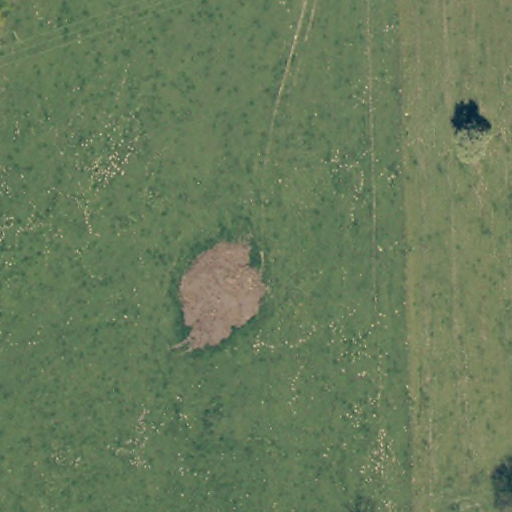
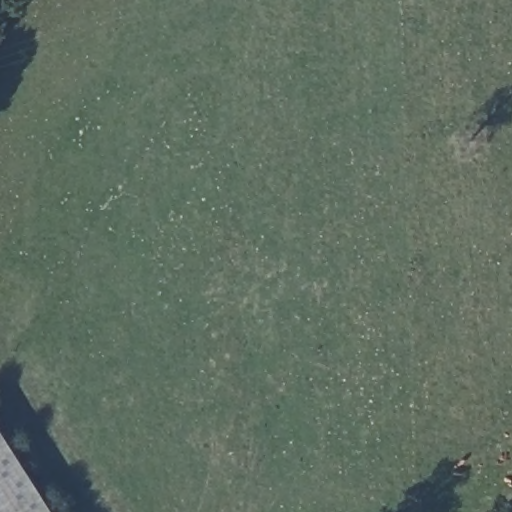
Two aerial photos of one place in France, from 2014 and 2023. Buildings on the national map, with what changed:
new [(0,512),(0,425),(55,512),(0,512)]

